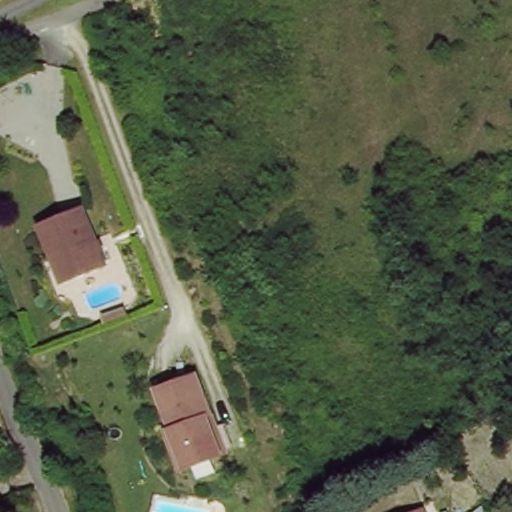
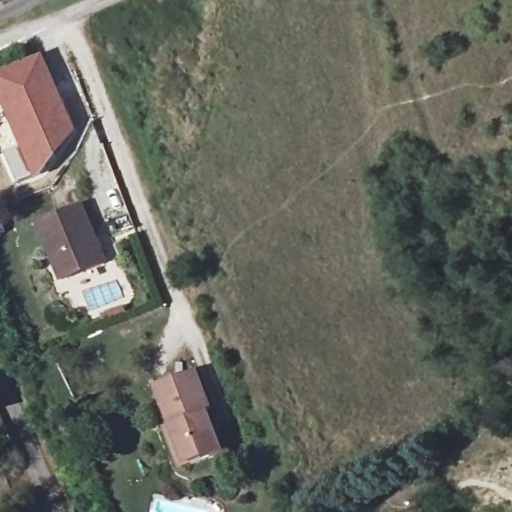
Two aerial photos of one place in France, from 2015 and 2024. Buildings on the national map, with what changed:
unchanged [(0,0),(16,0),(0,4),(0,0)]
new [(19,147),(0,105),(0,72),(40,53),(77,132),(67,142),(44,173),(34,180),(15,187),(2,155),(19,147)]
unchanged [(57,261),(47,227),(90,212),(110,270),(72,283),(65,285),(57,261)]
unchanged [(220,459),(187,472),(156,393),(195,378),(213,426),(225,457),(220,459)]
unchanged [(421,506),(423,512),(407,512),(421,506)]

